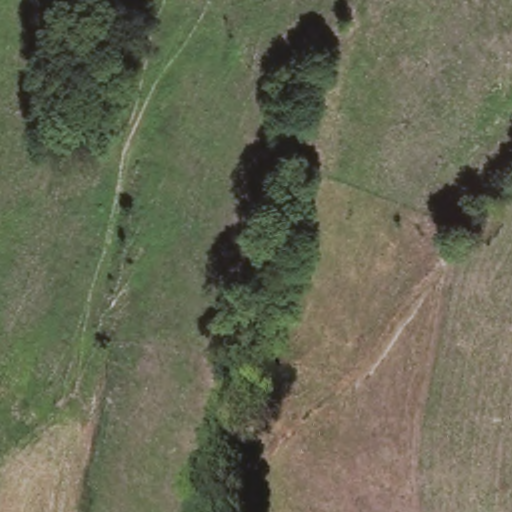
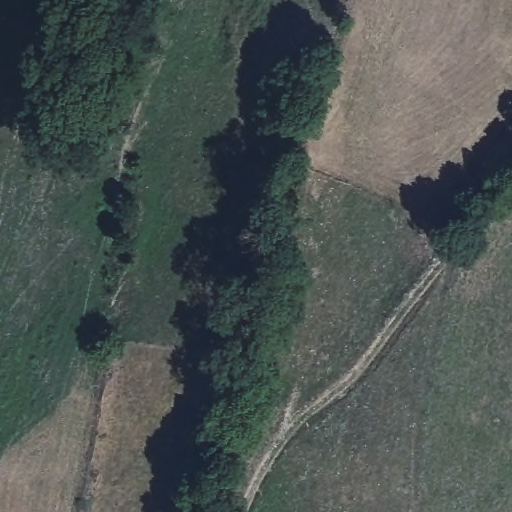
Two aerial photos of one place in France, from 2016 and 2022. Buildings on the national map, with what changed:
[]

